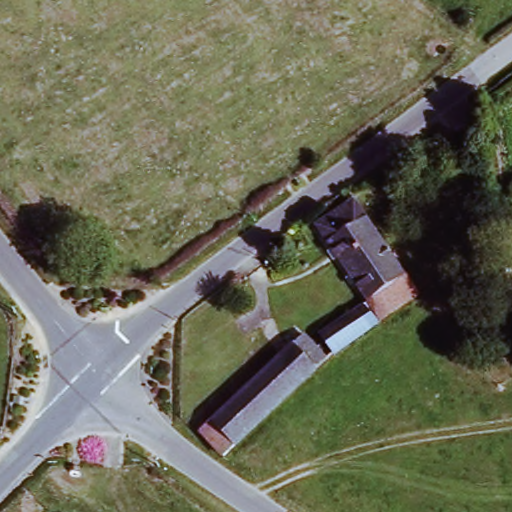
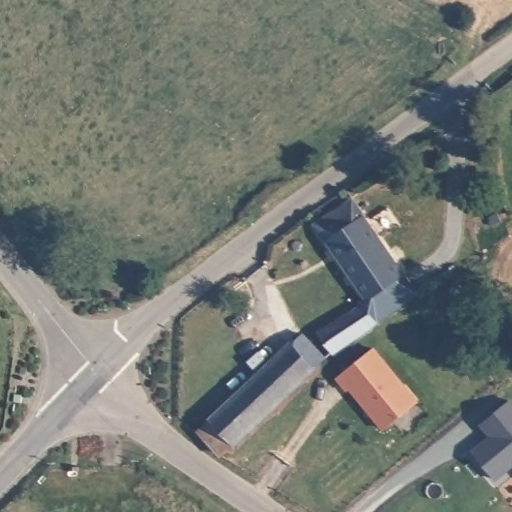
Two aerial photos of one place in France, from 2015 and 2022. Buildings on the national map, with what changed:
unchanged [(312,217),(350,192),(414,285),(336,340),(329,344),(316,324),(363,293),(312,217)]
new [(459,344),(449,330),(430,305),(439,298),(448,310),(467,337),(459,344)]
unchanged [(286,335),(281,330),(292,318),(298,324),(322,350),(218,446),(196,421),(286,335)]
new [(372,350),(417,403),(385,430),(351,390),(347,392),(337,380),(372,350)]
new [(491,437),(481,424),(509,401),(512,405),(512,464),(493,480),(471,452),(491,437)]

